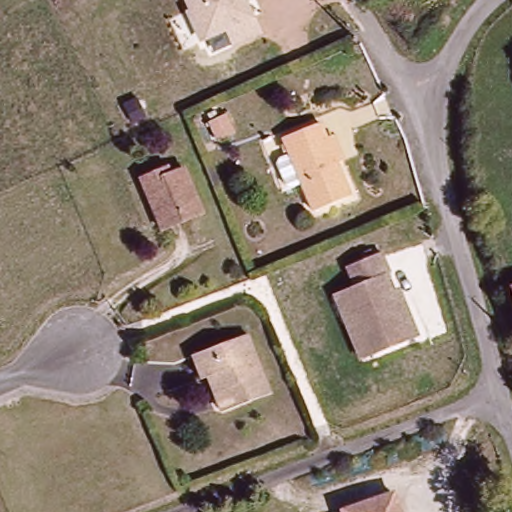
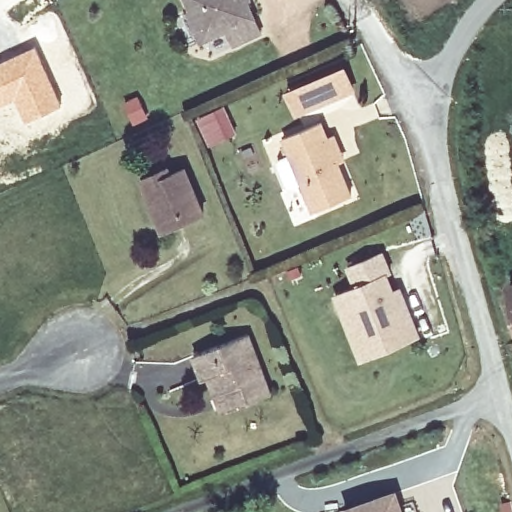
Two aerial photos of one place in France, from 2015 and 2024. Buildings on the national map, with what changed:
unchanged [(232,46),(227,33),(202,44),(200,36),(196,38),(185,13),(189,11),(184,0),(246,0),(261,33),(232,46)]
new [(61,105),(26,121),(14,99),(0,105),(0,61),(34,46),(61,105)]
new [(340,69),(350,91),(296,115),(286,92),(340,69)]
new [(137,94),(148,118),(129,126),(118,103),(137,94)]
unchanged [(206,131),(198,111),(214,105),(222,124),(206,131)]
unchanged [(315,216),(304,190),(294,194),(289,193),(279,171),(281,165),(291,161),(284,145),(319,130),(325,144),(335,139),(345,164),(336,168),(350,201),(315,216)]
unchanged [(205,217),(166,235),(145,191),(139,177),(166,164),(170,173),(184,168),(205,217)]
unchanged [(359,315),(343,321),(331,291),(350,283),(342,263),(377,249),(386,269),(380,271),(391,300),(398,296),(414,333),(373,350),(359,315)]
unchanged [(220,398),(211,381),(207,383),(198,360),(253,337),(276,395),(254,404),(226,414),(220,398)]
unchanged [(340,507),(399,489),(406,512),(342,512),(340,507)]

